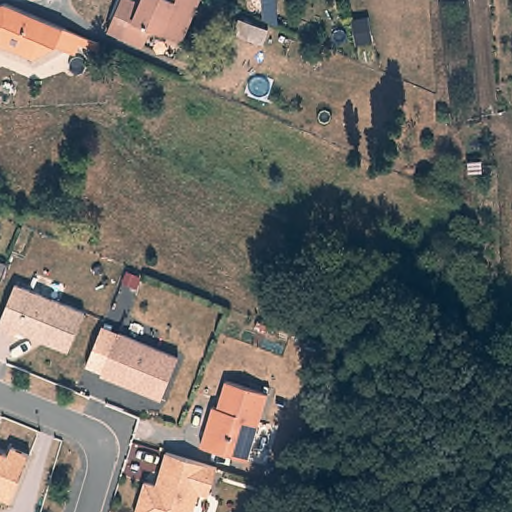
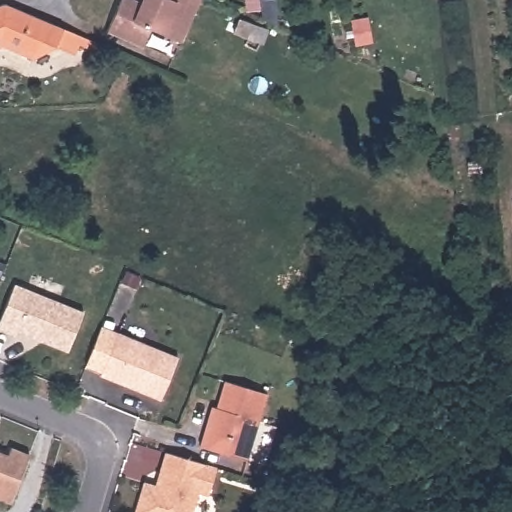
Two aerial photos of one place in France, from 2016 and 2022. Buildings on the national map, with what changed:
unchanged [(143,45),(111,31),(124,0),(133,0),(146,6),(150,0),(201,0),(183,40),(150,28),(143,45)]
unchanged [(74,55),(56,47),(35,53),(29,58),(3,45),(0,46),(0,8),(5,7),(80,39),(74,55)]
unchanged [(237,20),(266,32),(258,50),(230,38),(237,20)]
unchanged [(91,318),(75,357),(48,347),(49,342),(39,339),(36,341),(24,336),(22,340),(4,334),(21,290),(91,318)]
unchanged [(182,362),(166,404),(106,380),(121,338),(182,362)]
unchanged [(272,394),(252,462),(205,447),(214,414),(220,416),(229,381),(272,394)]
unchanged [(16,448),(33,455),(16,503),(0,497),(0,451),(11,456),(16,448)]
unchanged [(210,496),(200,493),(194,512),(137,512),(146,484),(161,489),(165,479),(161,473),(168,453),(219,468),(210,496)]

